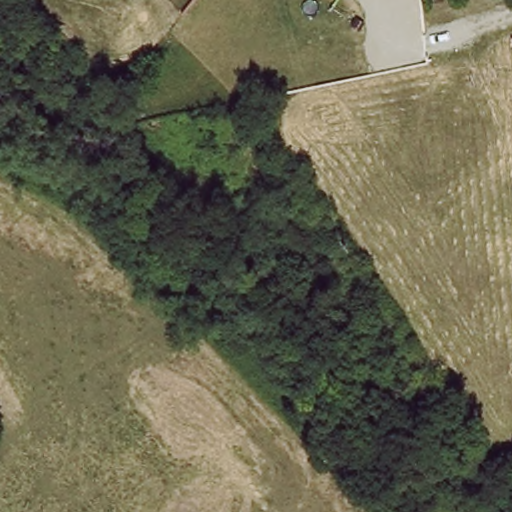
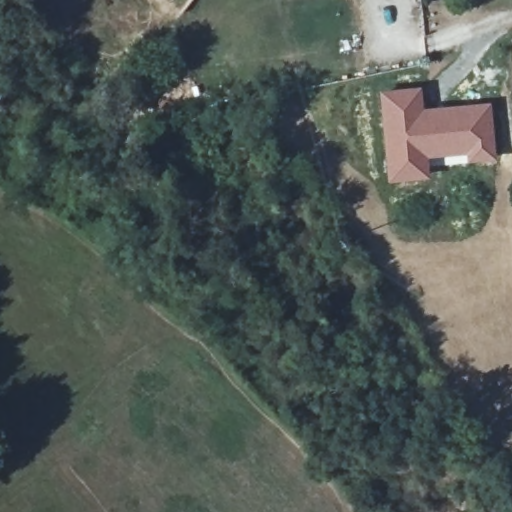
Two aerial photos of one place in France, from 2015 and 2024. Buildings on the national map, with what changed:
new [(512,37),(512,49),(509,38),(512,37)]
new [(421,86),(424,107),(491,102),(497,162),(465,165),(464,156),(428,160),(429,179),(386,183),(378,91),(421,86)]

